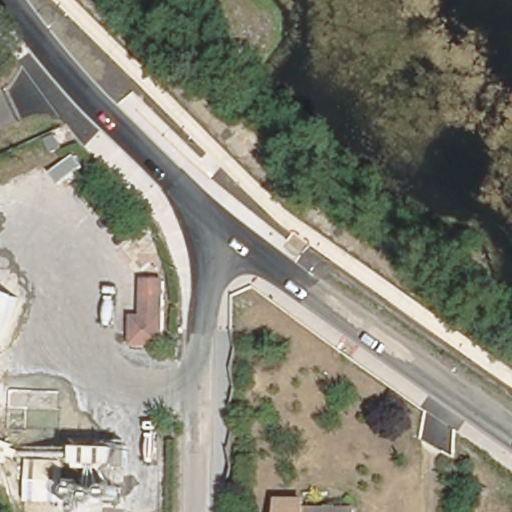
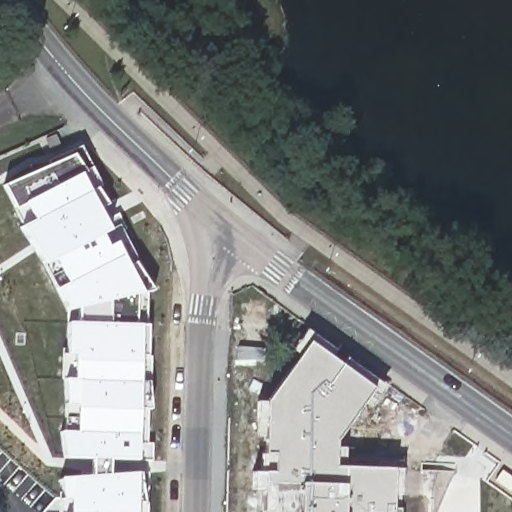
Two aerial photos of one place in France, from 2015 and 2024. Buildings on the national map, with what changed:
unchanged [(60,131),(67,147),(56,152),(49,136),(60,131)]
new [(146,325),(149,325),(149,355),(148,380),(152,408),(146,410),(147,443),(153,443),(153,460),(140,460),(111,458),(111,475),(138,473),(143,502),(143,512),(58,512),(58,498),(63,498),(62,478),(89,476),(89,460),(64,459),(59,431),(64,431),(64,405),(64,379),(61,379),(62,353),(67,353),(67,323),(77,322),(77,310),(69,311),(56,290),(43,264),(18,227),(23,225),(15,209),(3,186),(49,166),(48,161),(82,147),(102,185),(97,187),(107,204),(99,209),(105,220),(118,212),(124,225),(119,226),(135,263),(153,290),(146,291),(146,325)]
demolished [(163,279),(161,345),(131,344),(131,314),(141,315),(142,278),(163,279)]
demolished [(17,291),(0,337),(0,284),(17,291)]
new [(254,490),(253,472),(261,472),(261,455),(265,455),(266,435),(258,435),(257,419),(258,403),(267,403),(299,358),(292,351),(308,330),(387,387),(372,407),(365,401),(335,441),(336,449),(344,448),(344,466),(394,470),(393,512),(262,512),(263,490),(254,490)]
demolished [(61,458),(60,475),(77,476),(77,465),(79,442),(121,445),(119,465),(120,465),(120,483),(123,490),(122,497),(116,501),(102,503),(87,502),(76,496),(74,497),(73,511),(57,511),(57,500),(24,498),(26,457),(61,458)]
demolished [(357,512),(307,512),(307,501),(358,502),(357,512)]

